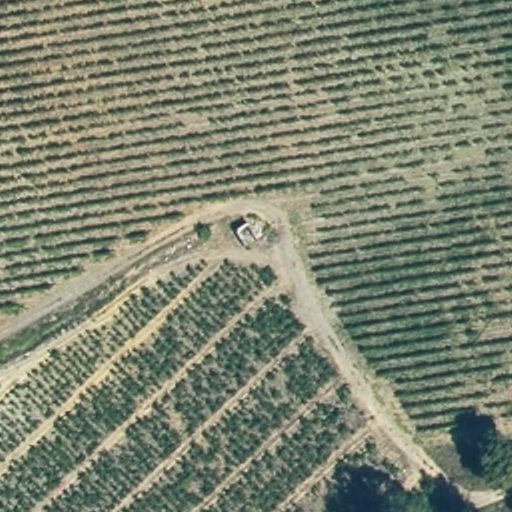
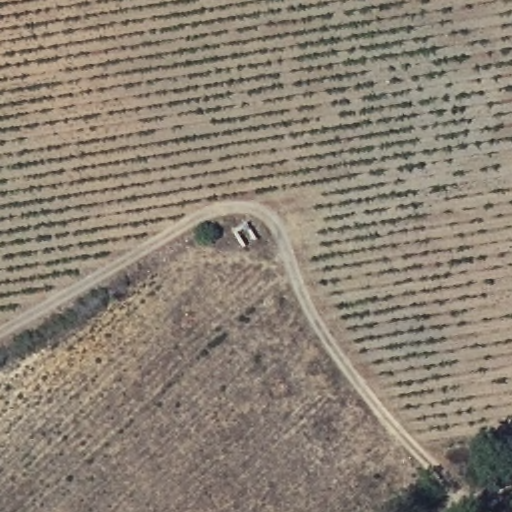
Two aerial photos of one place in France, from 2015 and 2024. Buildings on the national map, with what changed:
unchanged [(245,226),(255,240),(240,249),(234,232),(245,226)]

